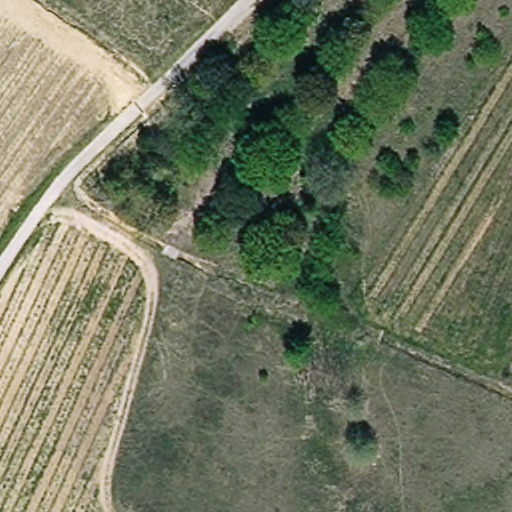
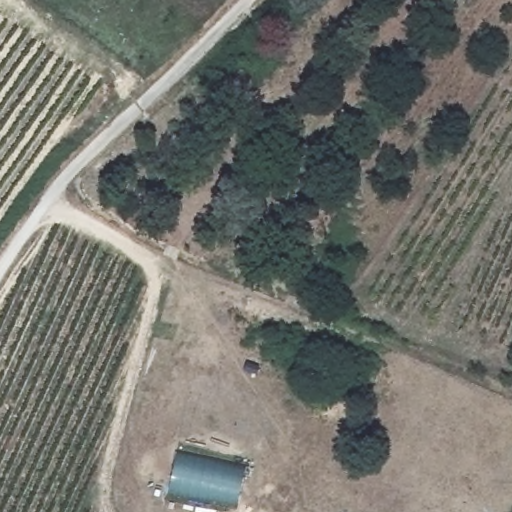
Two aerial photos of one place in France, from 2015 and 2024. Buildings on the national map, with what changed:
new [(168,492),(178,451),(246,465),(236,507),(168,492)]

